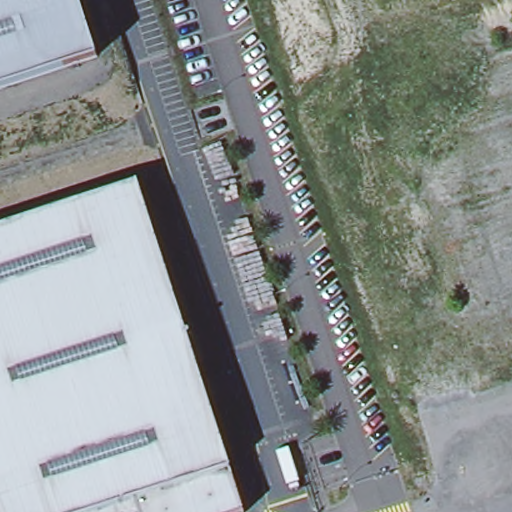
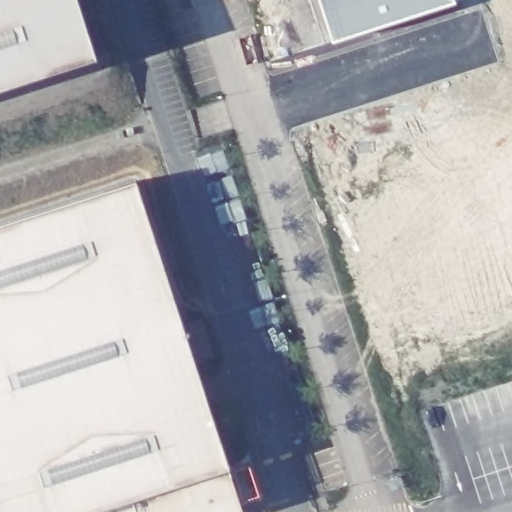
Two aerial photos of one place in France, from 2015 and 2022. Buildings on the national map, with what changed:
unchanged [(0,90),(0,0),(72,0),(92,61),(0,90)]
new [(332,43),(320,0),(455,0),(457,4),(332,43)]
unchanged [(224,467),(128,498),(85,512),(0,512),(0,221),(132,179),(224,467)]
unchanged [(238,512),(237,512),(132,512),(128,498),(224,467),(238,512)]
unchanged [(132,512),(85,512),(128,498),(132,512)]

